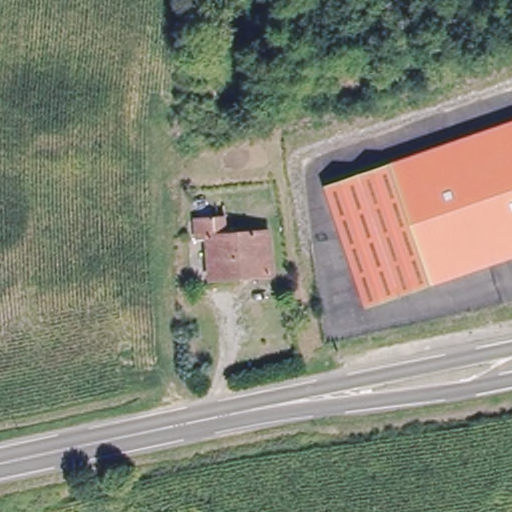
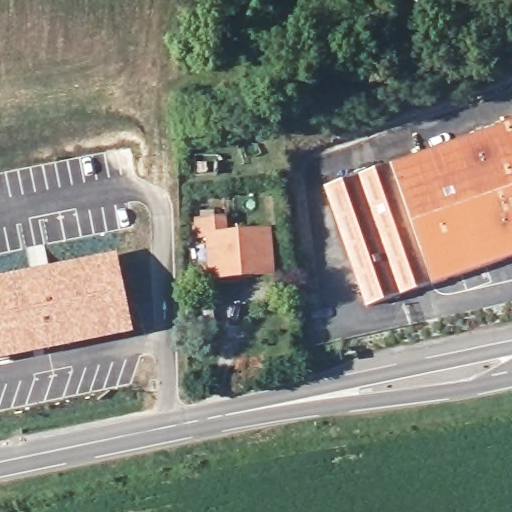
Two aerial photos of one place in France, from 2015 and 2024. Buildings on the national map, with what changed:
unchanged [(512,261),(427,286),(389,162),(512,126),(512,261)]
unchanged [(427,286),(360,306),(324,182),(389,162),(427,286)]
unchanged [(215,278),(211,236),(205,237),(204,218),(229,217),(229,232),(274,229),(277,272),(215,278)]
new [(30,270),(117,254),(134,333),(0,360),(0,276),(30,270)]

